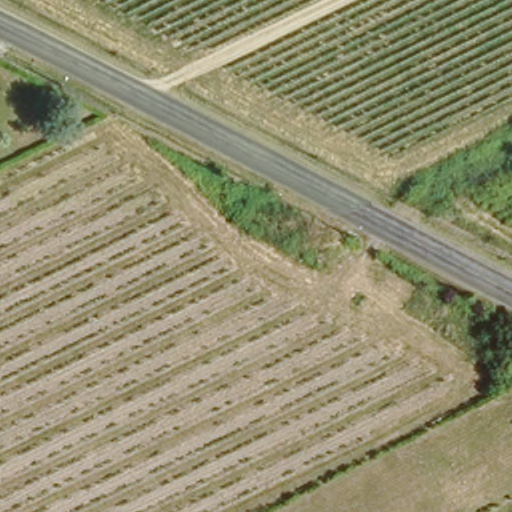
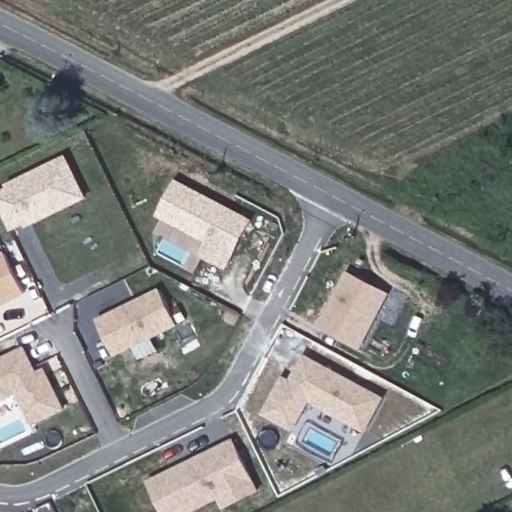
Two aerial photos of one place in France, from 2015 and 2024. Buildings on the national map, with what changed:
new [(2,191),(1,188),(59,161),(79,199),(32,223),(31,220),(5,233),(0,224),(0,192),(2,191)]
new [(219,269),(195,257),(202,243),(152,217),(171,182),(245,220),(219,269)]
new [(2,253),(22,293),(0,303),(0,255),(2,253)]
new [(353,349),(314,328),(342,275),(381,296),(353,349)]
new [(154,292),(171,326),(107,356),(91,323),(154,292)]
new [(29,364),(34,374),(42,370),(60,409),(31,423),(16,391),(0,399),(0,359),(22,349),(29,364)]
new [(281,379),(289,383),(302,357),(380,397),(363,429),(306,400),(290,430),(262,415),(281,379)]
new [(147,483),(230,442),(255,492),(221,508),(217,499),(205,504),(189,512),(160,512),(159,508),(147,483)]

